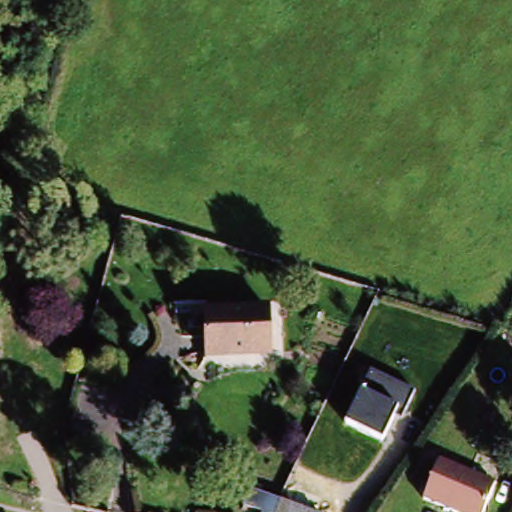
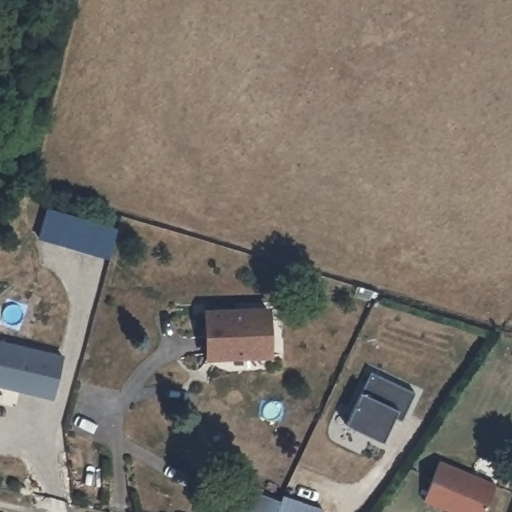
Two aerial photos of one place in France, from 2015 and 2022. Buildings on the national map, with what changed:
new [(92,259),(76,254),(40,241),(50,212),(86,225),(101,230),(92,259)]
unchanged [(277,363),(213,363),(213,320),(277,320),(277,363)]
new [(62,361),(52,403),(0,390),(0,346),(62,361)]
unchanged [(400,420),(396,417),(383,440),(344,423),(370,371),(414,390),(400,420)]
unchanged [(495,485),(483,512),(446,512),(421,502),(439,463),(495,485)]
unchanged [(252,512),(234,507),(238,496),(267,503),(268,498),(324,512),(252,512)]

